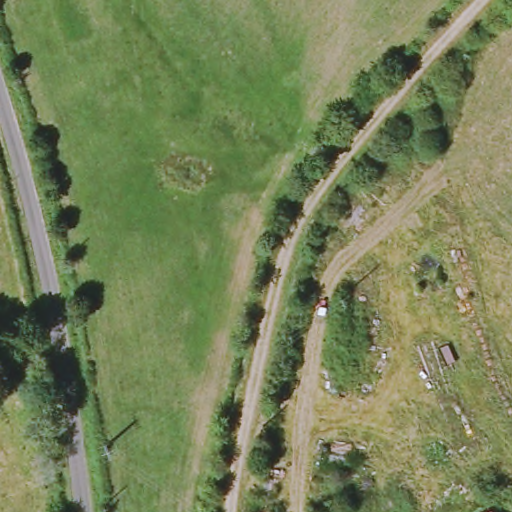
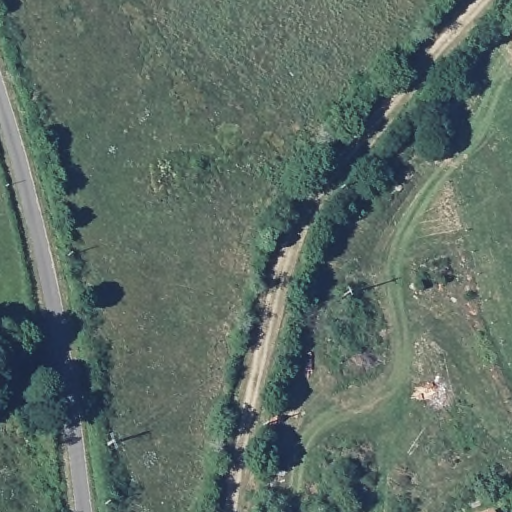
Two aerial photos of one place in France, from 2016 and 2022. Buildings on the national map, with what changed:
unchanged [(487,512),(482,512),(486,510),(487,512)]

